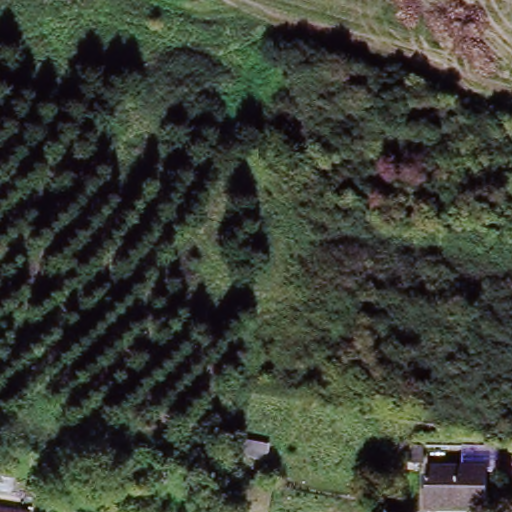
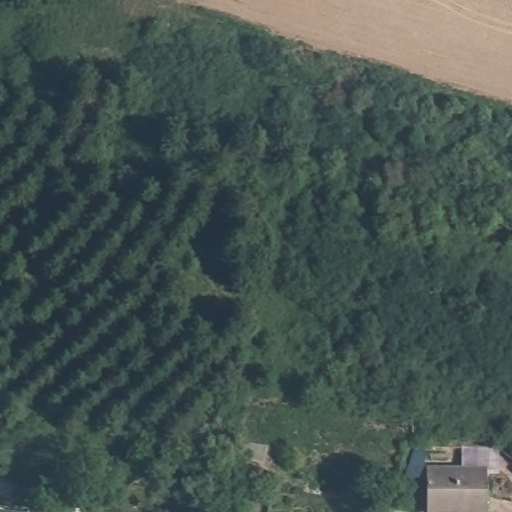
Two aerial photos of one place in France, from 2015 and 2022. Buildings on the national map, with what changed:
unchanged [(462,469),(463,456),(496,458),(495,477),(487,475),(487,512),(426,512),(429,468),(462,469)]

